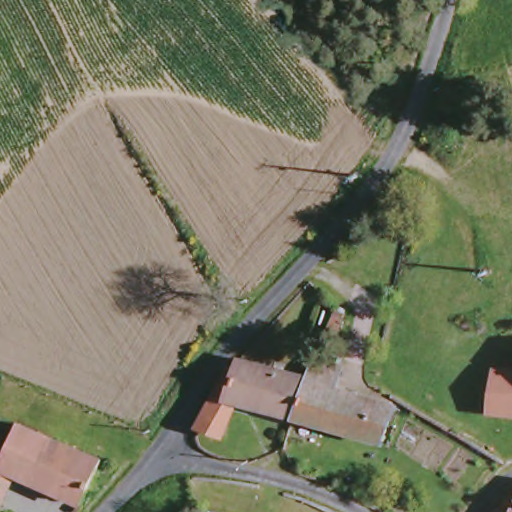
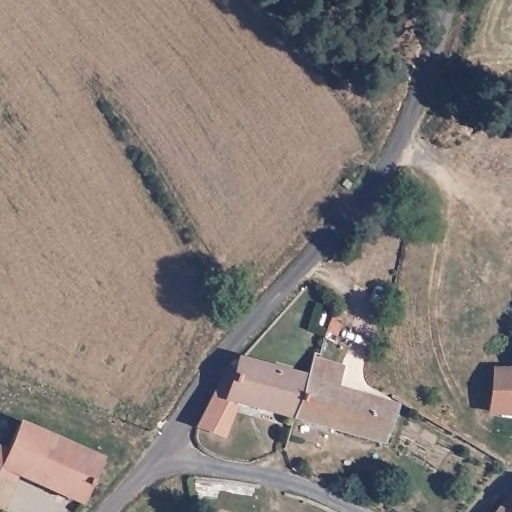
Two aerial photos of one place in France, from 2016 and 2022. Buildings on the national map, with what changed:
unchanged [(332,369),(326,387),(368,400),(379,404),(369,441),(286,418),(299,381),(307,357),(316,361),(332,369)]
unchanged [(192,431),(211,396),(237,360),(299,381),(286,418),(231,403),(216,438),(192,431)]
unchanged [(491,373),(512,374),(512,414),(479,412),(491,373)]
unchanged [(12,424),(96,456),(93,465),(95,467),(99,471),(100,475),(98,483),(92,488),(86,484),(80,497),(14,475),(0,506),(0,451),(12,424)]
unchanged [(495,512),(512,493),(512,512),(495,512)]

